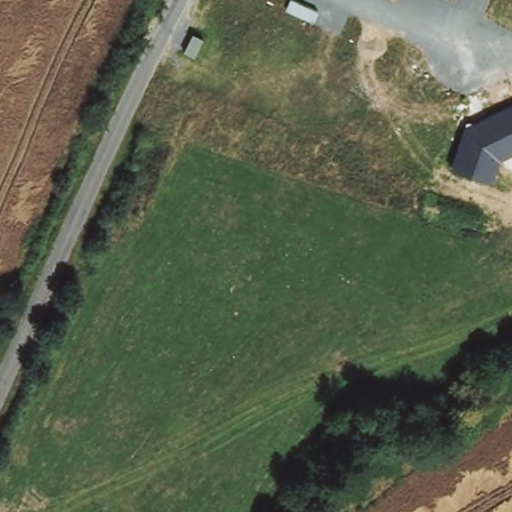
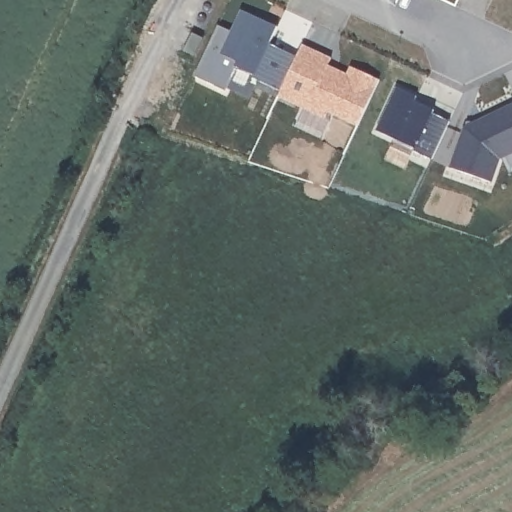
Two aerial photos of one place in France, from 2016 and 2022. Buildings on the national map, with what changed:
new [(329,112),(325,119),(278,98),(281,91),(253,78),(254,74),(234,65),(237,59),(221,54),(240,10),(278,28),(271,43),(298,55),(303,44),(333,58),(329,64),(347,71),(350,66),(378,79),(358,124),(329,112)]
new [(397,87),(417,96),(415,100),(435,110),(433,114),(450,121),(433,159),(414,151),(415,149),(377,131),(397,87)]
unchanged [(500,159),(493,182),(453,168),(464,129),(512,106),(512,153),(500,159)]

